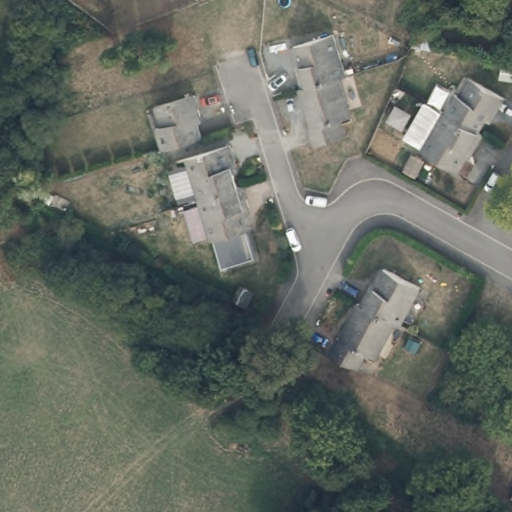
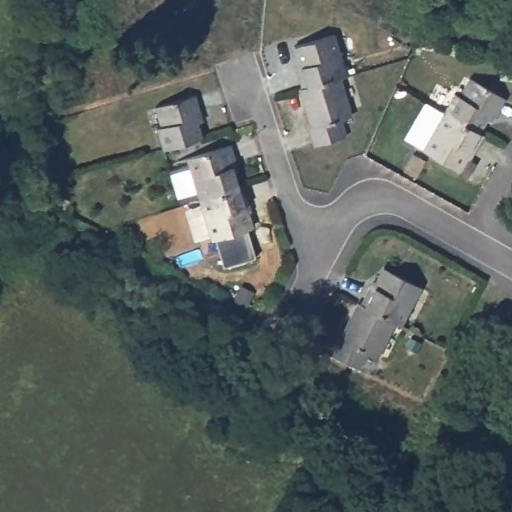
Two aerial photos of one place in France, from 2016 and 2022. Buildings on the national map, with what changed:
unchanged [(340,72),(319,78),(300,84),(295,69),(300,67),(292,43),(333,30),(343,71),(340,72)]
unchanged [(319,78),(340,72),(352,112),(341,116),(346,133),(310,143),(305,126),(308,125),(296,85),(300,84),(319,78)]
unchanged [(457,97),(473,105),(482,86),(508,98),(497,121),(490,117),(480,134),(448,115),(457,97)]
unchanged [(161,152),(154,133),(170,128),(162,106),(192,96),(199,118),(191,121),(197,140),(161,152)]
unchanged [(488,139),(477,163),(470,159),(461,177),(425,159),(428,150),(411,141),(430,104),(448,115),(480,134),(489,139),(488,139)]
unchanged [(204,195),(194,198),(183,159),(228,143),(235,165),(229,167),(234,185),(204,195)]
unchanged [(240,209),(247,231),(207,244),(194,198),(204,195),(234,185),(240,183),(247,207),(240,209)]
unchanged [(354,298),(363,277),(374,282),(382,261),(415,276),(395,318),(354,298)]
unchanged [(362,352),(356,368),(355,368),(321,351),(329,333),(337,336),(354,298),(395,318),(376,358),(362,352)]

